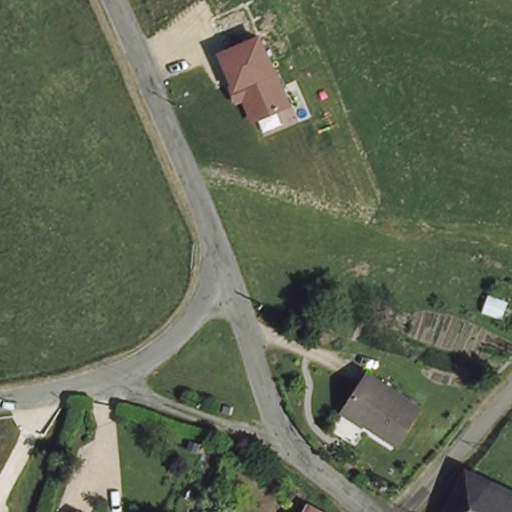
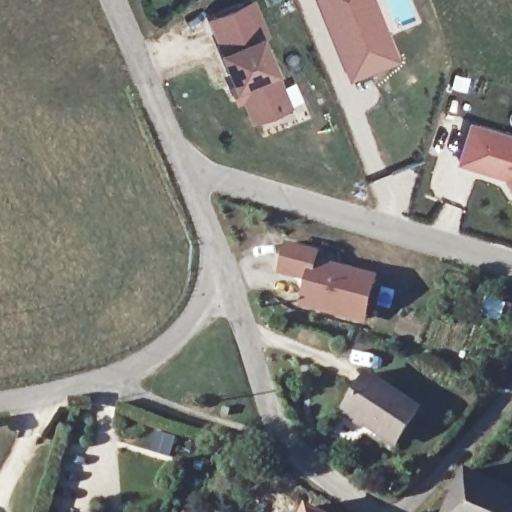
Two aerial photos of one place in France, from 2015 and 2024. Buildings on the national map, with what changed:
new [(251,0),(254,0),(266,32),(224,52),(210,21),(251,0)]
new [(347,82),(314,0),(373,0),(398,62),(347,82)]
unchanged [(266,32),(297,107),(259,123),(249,101),(241,104),(233,87),(237,84),(224,52),(266,32)]
new [(512,200),(501,185),(455,170),(466,127),(512,141),(512,200)]
new [(322,250),(319,261),(377,275),(365,322),(299,305),(305,282),(277,275),(286,242),(322,250)]
unchanged [(420,410),(396,446),(346,412),(368,377),(420,410)]
unchanged [(475,475),(506,498),(506,499),(496,512),(449,512),(475,475)]
unchanged [(512,512),(496,512),(506,499),(512,503),(512,512)]
unchanged [(313,507),(327,512),(311,512),(313,507)]

